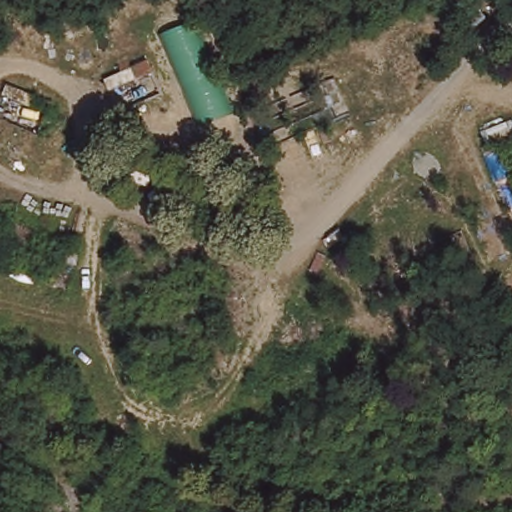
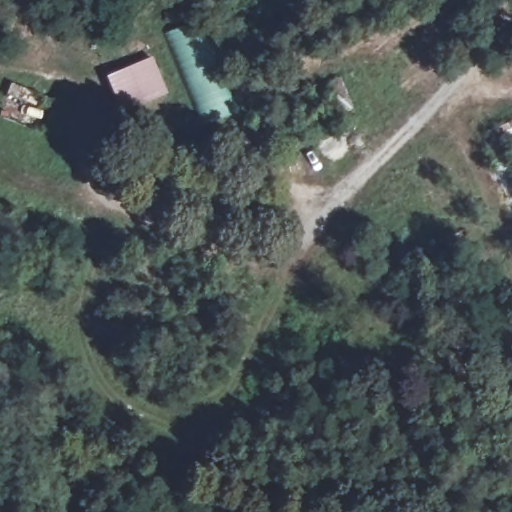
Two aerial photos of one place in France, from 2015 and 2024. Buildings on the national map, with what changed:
unchanged [(199,20),(237,111),(205,123),(165,34),(199,20)]
new [(125,112),(107,76),(153,57),(168,93),(125,112)]

